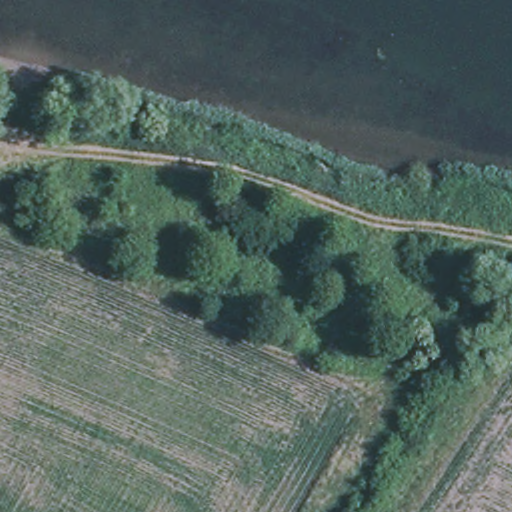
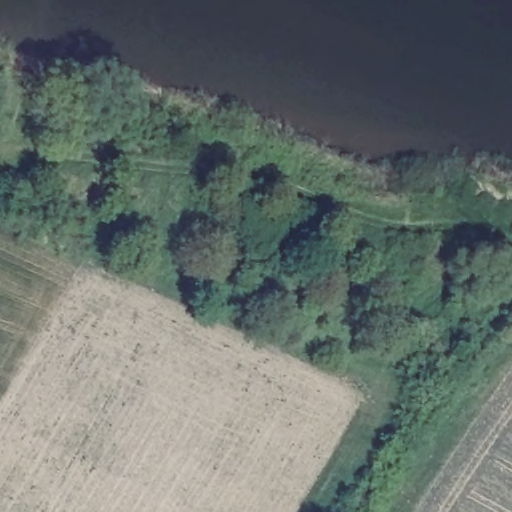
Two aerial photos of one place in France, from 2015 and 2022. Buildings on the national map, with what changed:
[]

